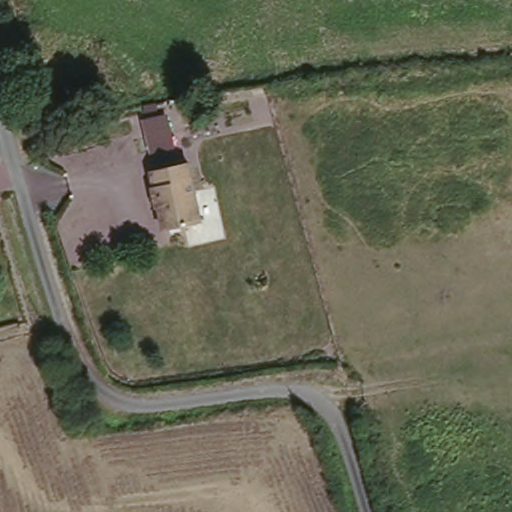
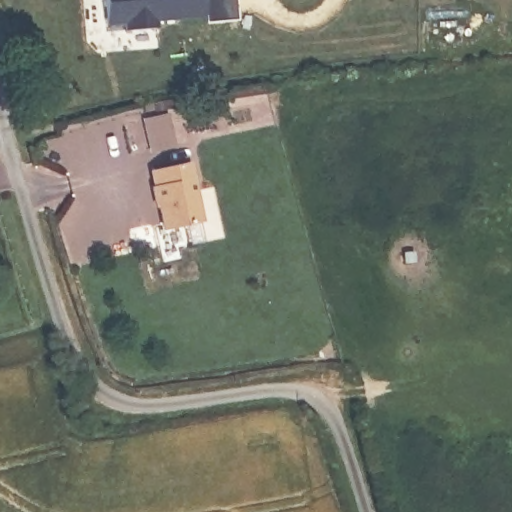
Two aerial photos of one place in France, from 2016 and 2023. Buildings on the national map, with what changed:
new [(205,19),(157,21),(157,27),(128,27),(128,22),(105,22),(103,0),(204,0),(205,19)]
new [(170,112),(177,148),(149,154),(142,118),(170,112)]
unchanged [(190,165),(200,224),(162,230),(157,202),(155,202),(152,187),(155,187),(152,171),(190,165)]

